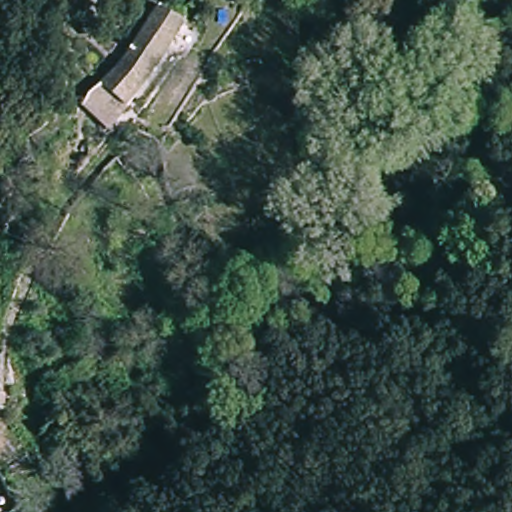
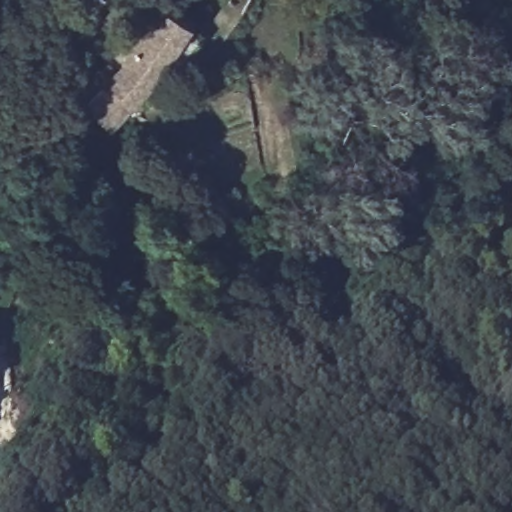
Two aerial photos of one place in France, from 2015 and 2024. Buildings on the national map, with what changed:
unchanged [(148,85),(113,130),(88,114),(85,112),(83,110),(81,110),(129,53),(158,7),(181,22),(148,85)]
unchanged [(472,21),(472,12),(481,12),(481,22),(472,21)]

